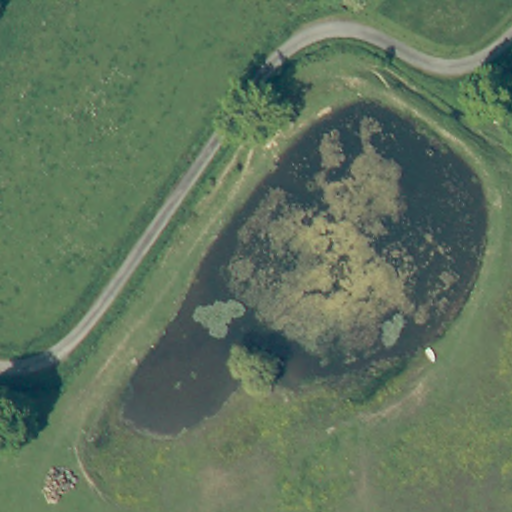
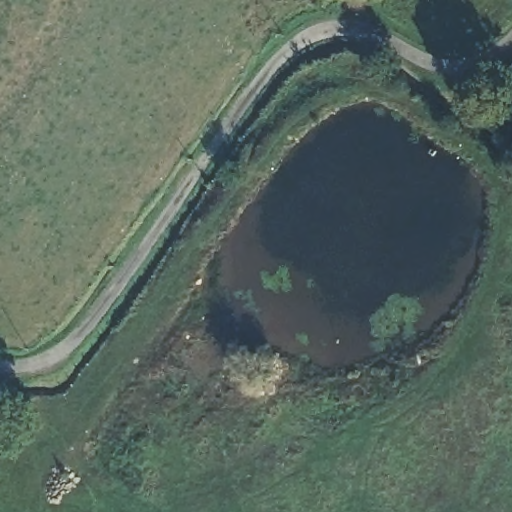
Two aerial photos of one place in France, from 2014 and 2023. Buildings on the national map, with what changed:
unchanged [(503,104),(512,107),(512,130),(496,122),(503,104)]

